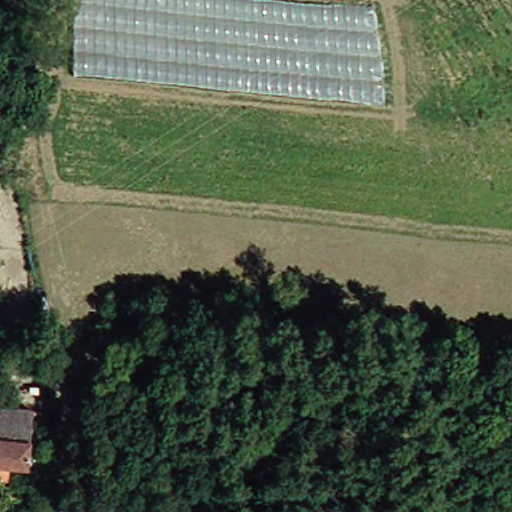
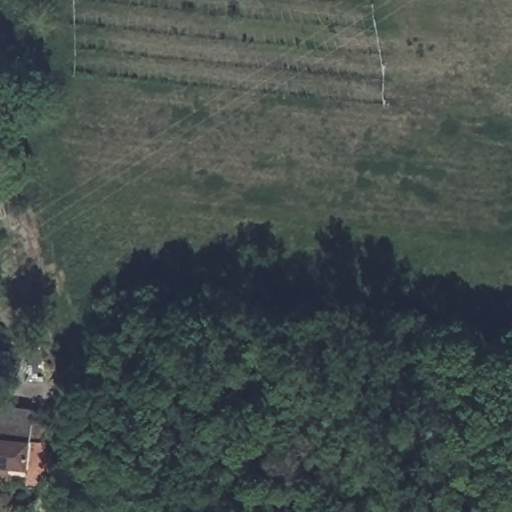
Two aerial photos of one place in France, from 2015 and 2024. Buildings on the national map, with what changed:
demolished [(466,111),(73,74),(73,0),(305,0),(454,13),(466,111)]
unchanged [(0,462),(0,392),(9,393),(8,405),(39,409),(35,467),(0,462)]

